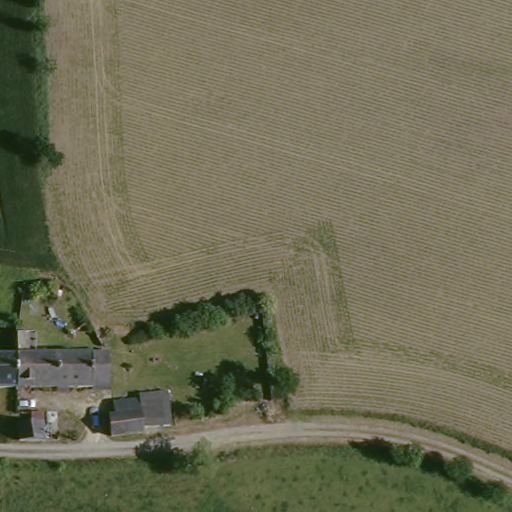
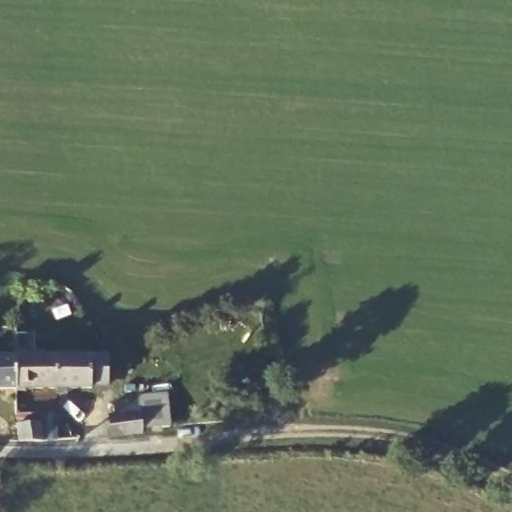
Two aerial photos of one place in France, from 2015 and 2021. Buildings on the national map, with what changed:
unchanged [(0,395),(0,334),(15,334),(15,362),(16,393),(16,395),(0,395)]
unchanged [(16,393),(15,362),(18,361),(18,340),(34,340),(35,361),(51,361),(53,394),(16,395),(16,393)]
unchanged [(89,388),(89,392),(53,394),(51,361),(96,360),(109,360),(109,388),(89,388)]
unchanged [(111,437),(110,414),(116,414),(116,402),(121,402),(139,400),(138,397),(166,395),(168,427),(141,428),(142,433),(111,437)]
unchanged [(17,440),(16,423),(25,423),(25,411),(39,410),(40,438),(17,440)]

